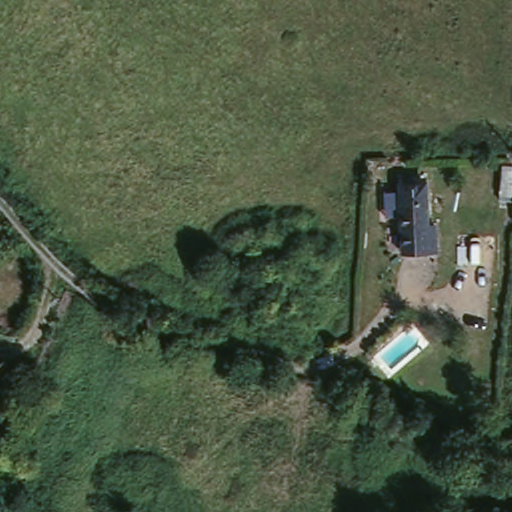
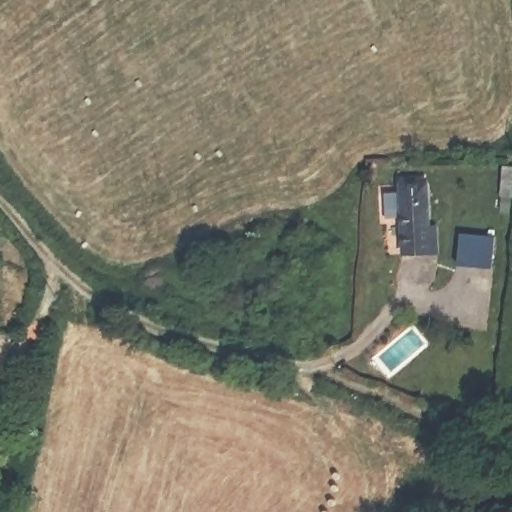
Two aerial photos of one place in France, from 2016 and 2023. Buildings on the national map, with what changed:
unchanged [(426,172),(427,223),(437,224),(437,256),(404,255),(403,224),(387,224),(389,196),(400,195),(399,171),(426,172)]

